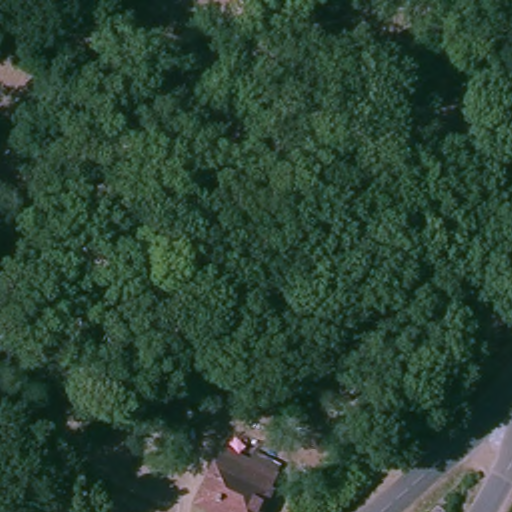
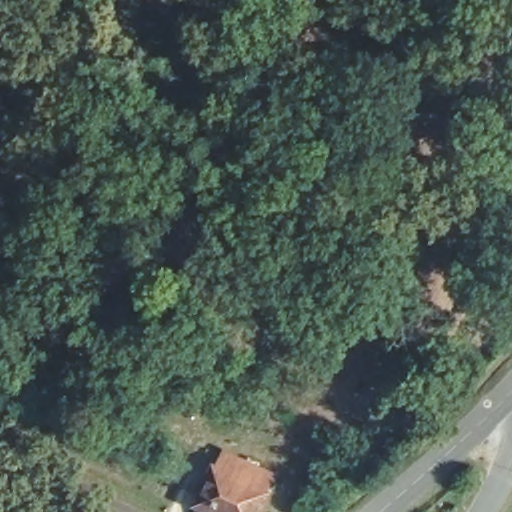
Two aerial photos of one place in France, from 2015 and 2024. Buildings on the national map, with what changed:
unchanged [(220,477),(228,462),(253,475),(277,486),(270,501),(273,502),(269,512),(205,512),(220,477)]

